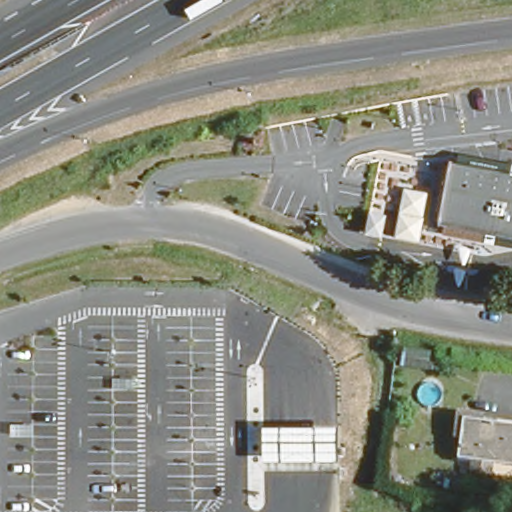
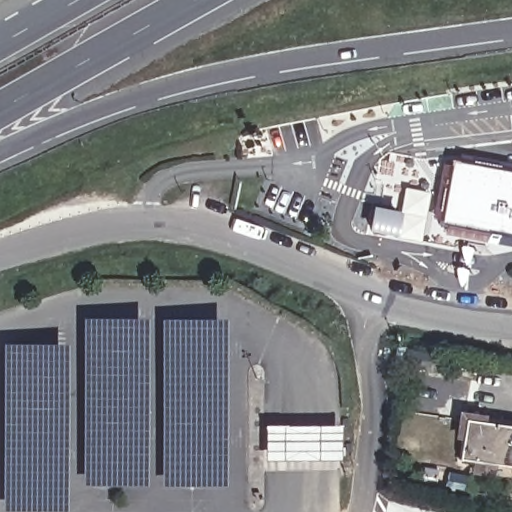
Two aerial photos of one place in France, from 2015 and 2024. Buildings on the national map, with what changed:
unchanged [(446,159),(512,169),(512,238),(434,225),(446,159)]
unchanged [(416,238),(395,235),(403,188),(427,191),(416,238)]
new [(90,315),(156,313),(150,487),(84,488),(90,315)]
new [(168,313),(230,320),(226,489),(161,489),(168,313)]
new [(74,343),(74,509),(9,510),(9,343),(74,343)]
new [(398,345),(422,350),(419,370),(394,365),(398,345)]
unchanged [(459,413),(512,423),(512,463),(452,453),(459,413)]
new [(270,427),(348,427),(348,455),(269,455),(270,427)]
new [(425,466),(451,472),(447,490),(421,484),(425,466)]

